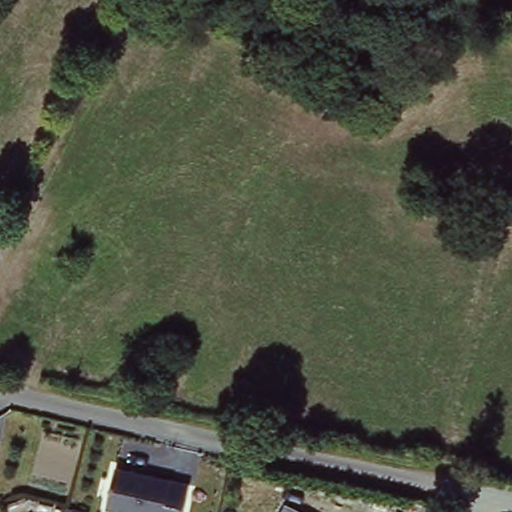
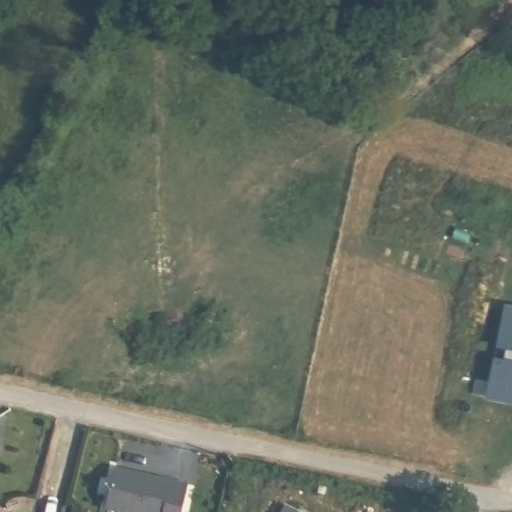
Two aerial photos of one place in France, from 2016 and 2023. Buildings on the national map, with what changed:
new [(494,356),(502,358),(505,346),(497,344),(505,305),(512,307),(512,401),(486,396),(494,356)]
unchanged [(117,467),(190,487),(183,512),(128,512),(107,506),(117,467)]

